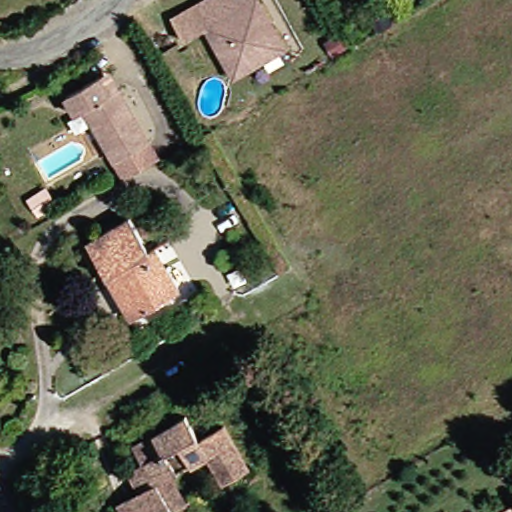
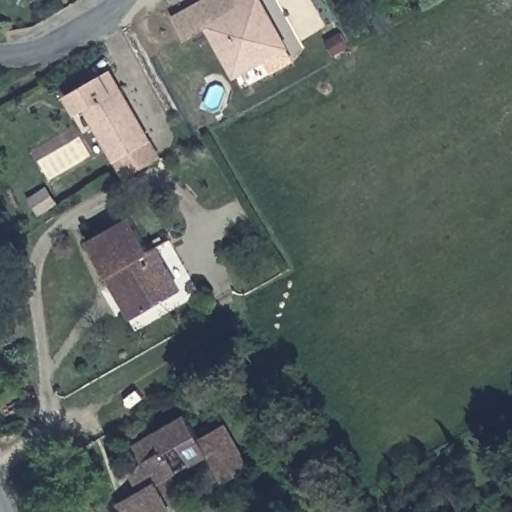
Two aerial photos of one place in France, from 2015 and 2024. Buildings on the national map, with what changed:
unchanged [(226,61),(207,27),(185,40),(173,19),(206,0),(258,0),(285,47),(249,68),(235,76),(226,61)]
unchanged [(126,169),(85,99),(76,104),(66,86),(99,67),(108,62),(118,79),(159,150),(126,169)]
unchanged [(143,315),(118,273),(112,277),(92,243),(134,219),(153,251),(159,247),(184,290),(143,315)]
unchanged [(145,492),(136,477),(132,471),(148,462),(144,455),(138,446),(159,433),(190,416),(204,439),(228,426),(253,468),(228,482),(211,453),(174,475),(190,502),(177,510),(178,512),(128,512),(123,504),(145,492)]
unchanged [(512,510),(512,512),(504,512),(510,508),(512,510)]

